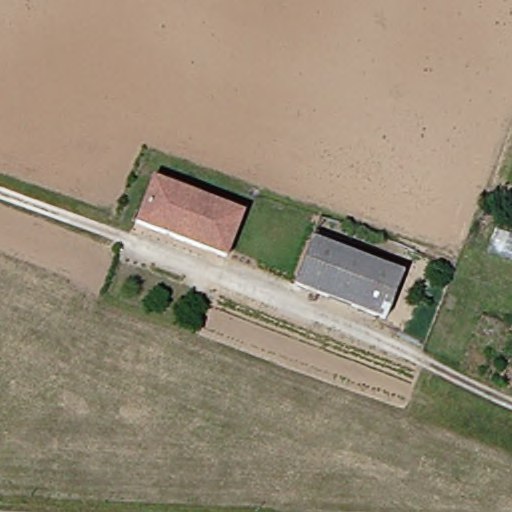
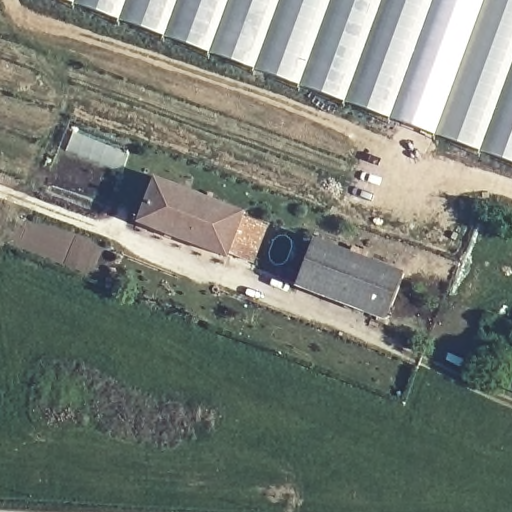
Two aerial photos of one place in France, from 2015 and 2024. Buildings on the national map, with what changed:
new [(512,0),(512,170),(66,0),(512,0)]
unchanged [(247,212),(230,255),(139,220),(155,177),(247,212)]
unchanged [(404,272),(387,316),(300,283),(317,238),(404,272)]

